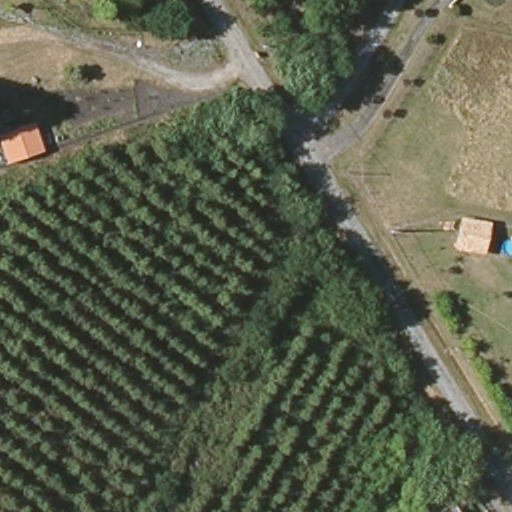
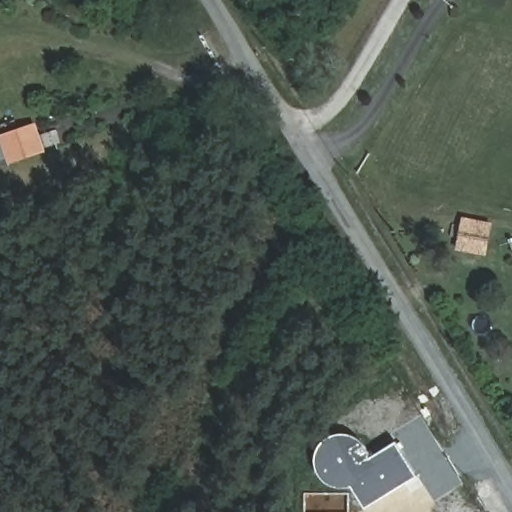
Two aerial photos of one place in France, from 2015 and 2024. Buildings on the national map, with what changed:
unchanged [(6,165),(0,146),(0,131),(34,120),(44,151),(6,165)]
unchanged [(492,225),(485,256),(455,251),(462,220),(492,225)]
new [(364,508),(351,486),(341,488),(332,486),(325,481),(320,476),(316,468),(315,461),(315,455),(318,447),(325,439),(330,435),(342,433),(351,435),(356,436),(359,438),(364,443),(369,451),(369,458),(395,442),(417,476),(364,508)]
unchanged [(458,512),(440,512),(453,504),(458,512)]

